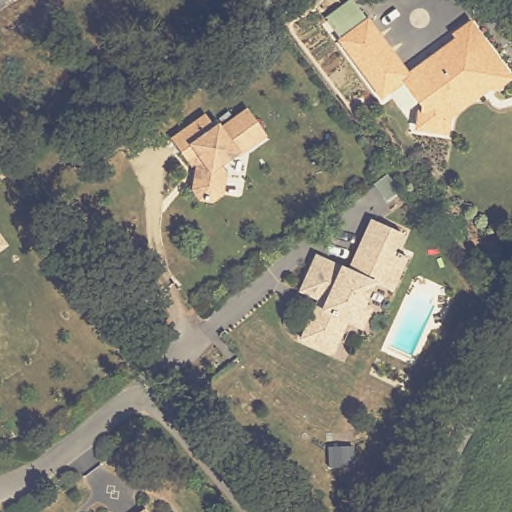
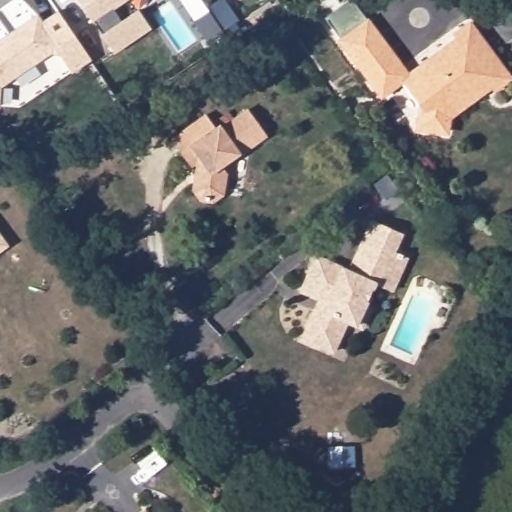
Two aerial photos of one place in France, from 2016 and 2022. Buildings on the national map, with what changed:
new [(111,10),(120,24),(136,13),(147,30),(112,54),(75,0),(125,0),(111,10)]
new [(45,22),(61,12),(94,59),(74,73),(62,54),(53,53),(3,88),(2,107),(0,106),(0,42),(40,15),(45,22)]
unchanged [(371,23),(410,76),(458,40),(457,37),(472,24),(512,78),(496,90),(488,81),(483,84),(475,84),(444,107),(452,117),(450,133),(420,129),(423,108),(405,83),(385,97),(344,42),(371,23)]
unchanged [(185,160),(170,136),(206,114),(214,127),(217,125),(220,128),(248,110),(265,137),(235,155),(234,154),(218,164),(222,170),(217,194),(207,200),(195,197),(189,187),(195,158),(187,163),(185,160)]
unchanged [(367,218),(397,229),(392,248),(406,253),(391,290),(377,284),(388,255),(358,243),(367,218)]
unchanged [(0,253),(0,231),(11,245),(0,253)]
unchanged [(349,271),(358,243),(388,255),(377,284),(373,284),(365,306),(371,309),(362,328),(347,323),(335,354),(303,341),(320,300),(300,294),(315,258),(349,271)]
unchanged [(146,512),(144,512),(145,511),(146,512)]

